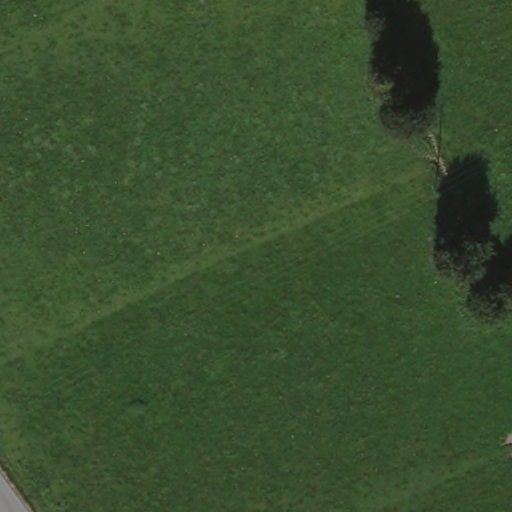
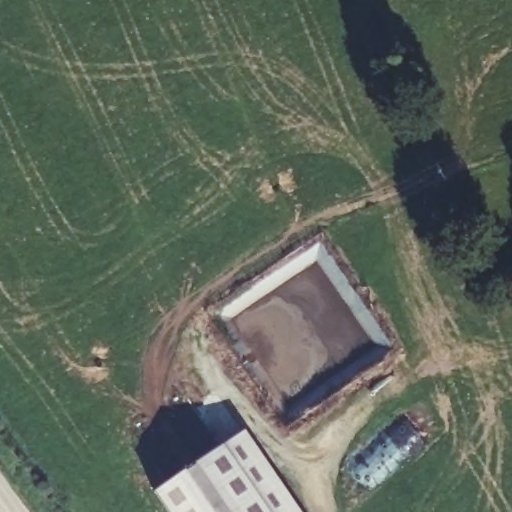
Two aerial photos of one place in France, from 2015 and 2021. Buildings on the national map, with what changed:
new [(222,448),(245,433),(298,512),(168,512),(155,493),(222,448)]

